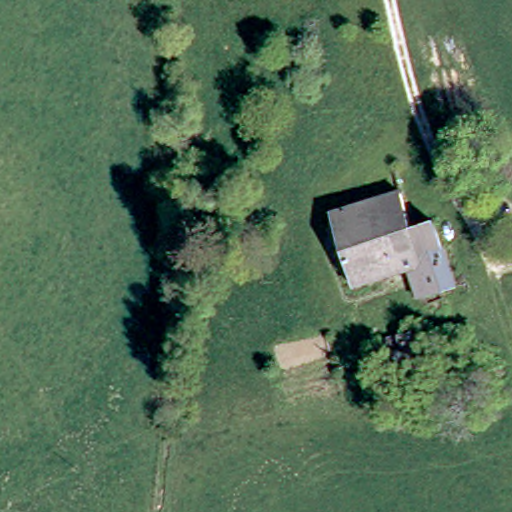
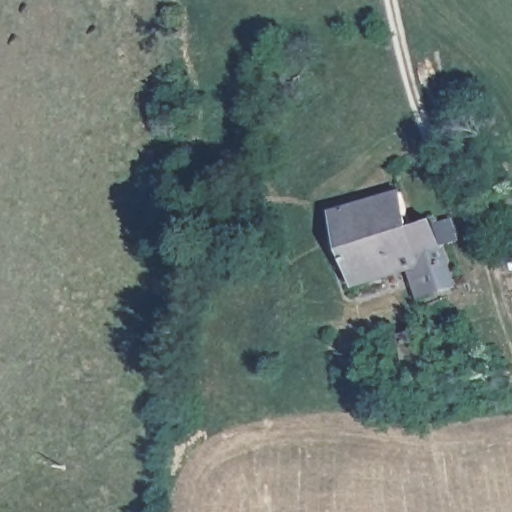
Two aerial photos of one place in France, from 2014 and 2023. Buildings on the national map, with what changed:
unchanged [(408,190),(420,225),(442,219),(460,282),(445,286),(448,297),(432,303),(428,292),(423,293),(415,267),(360,283),(338,211),(408,190)]
unchanged [(387,357),(385,341),(422,335),(426,367),(403,370),(402,355),(387,357)]

